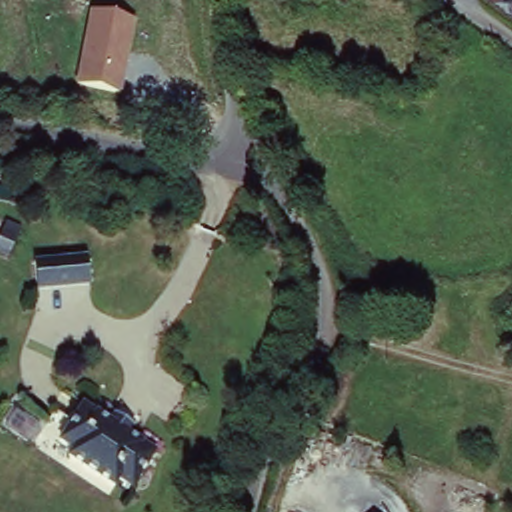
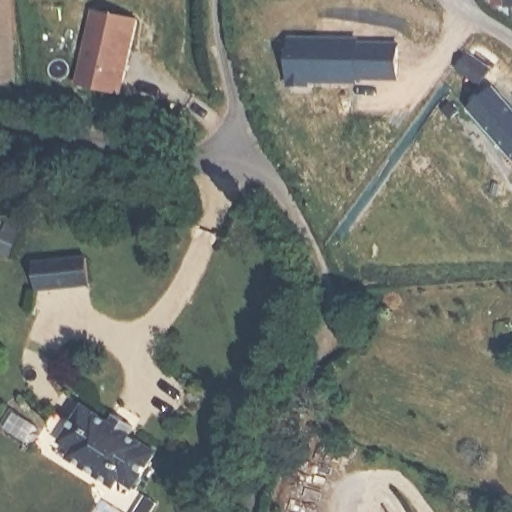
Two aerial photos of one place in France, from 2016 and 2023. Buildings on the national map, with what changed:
unchanged [(495,0),(512,0),(512,8),(496,10),(495,0)]
unchanged [(122,96),(78,88),(91,11),(137,20),(122,96)]
new [(400,36),(402,86),(286,86),(287,35),(400,36)]
new [(512,108),(512,171),(454,118),(485,83),(512,108)]
unchanged [(152,113),(134,111),(136,94),(156,98),(152,113)]
new [(20,185),(17,202),(0,199),(0,182),(20,185)]
new [(11,257),(0,252),(0,236),(7,219),(22,226),(11,257)]
demolished [(47,249),(42,262),(27,256),(34,243),(47,249)]
unchanged [(39,289),(35,258),(89,252),(93,282),(39,289)]
unchanged [(112,420),(120,413),(137,426),(134,433),(160,452),(135,489),(122,479),(116,486),(70,456),(75,448),(59,438),(86,401),(112,420)]

